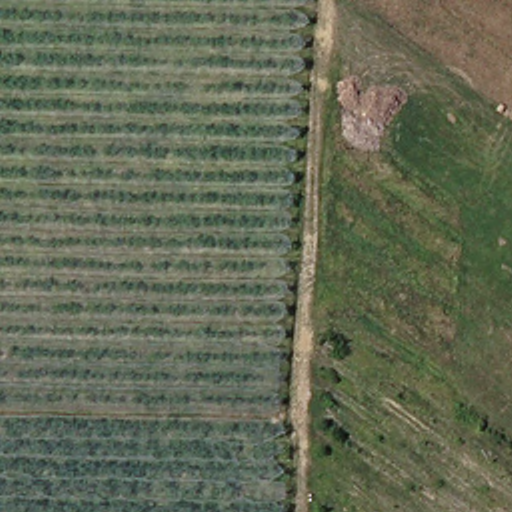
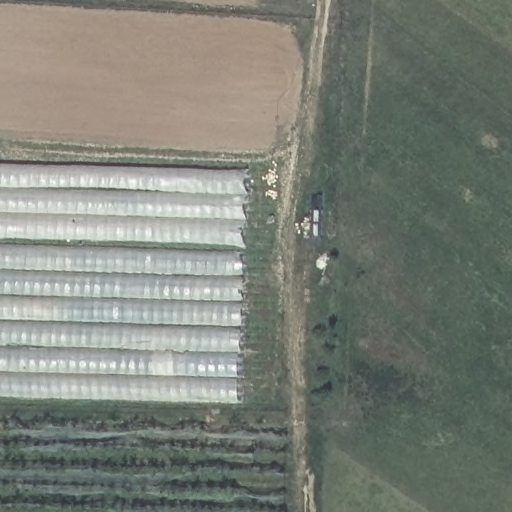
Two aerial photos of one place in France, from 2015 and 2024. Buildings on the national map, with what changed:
new [(246,171),(237,402),(0,395),(0,165),(246,171)]

